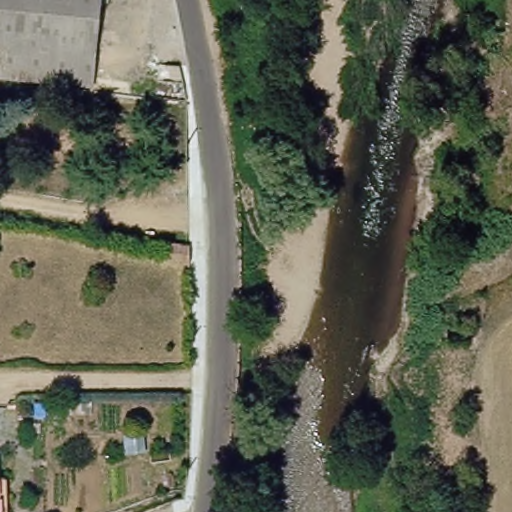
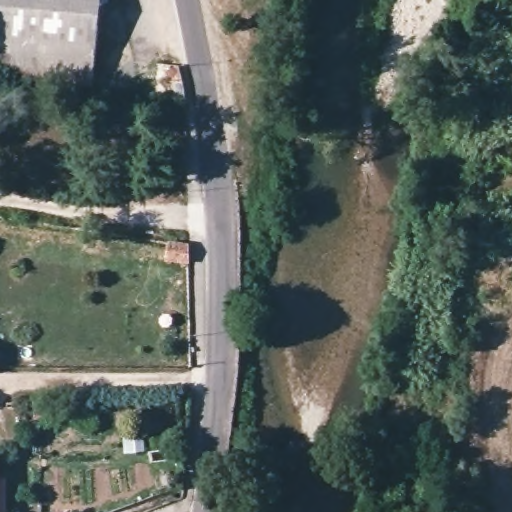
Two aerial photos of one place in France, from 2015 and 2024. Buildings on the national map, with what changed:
unchanged [(0,36),(0,0),(105,0),(100,46),(0,36)]
unchanged [(0,71),(0,36),(100,46),(95,83),(0,71)]
unchanged [(198,274),(176,270),(177,254),(198,256),(198,274)]
unchanged [(0,478),(4,479),(4,512),(0,512),(0,478)]

